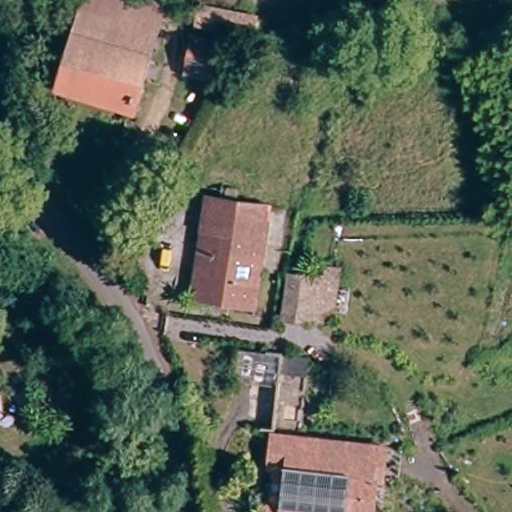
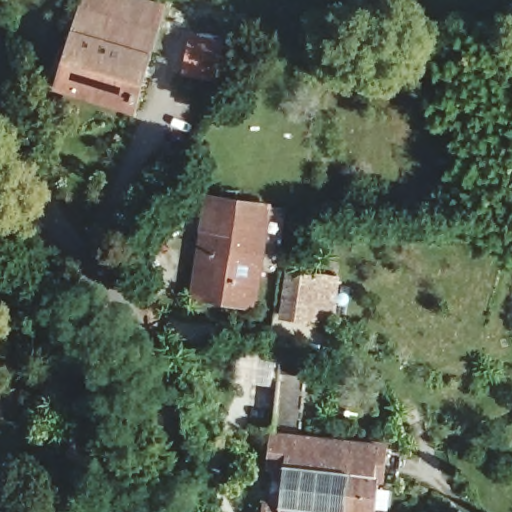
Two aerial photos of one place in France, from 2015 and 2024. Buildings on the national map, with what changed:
unchanged [(85,0),(135,0),(165,9),(138,107),(61,84),(82,9),(85,0)]
unchanged [(199,3),(263,15),(254,48),(227,43),(219,84),(184,77),(199,3)]
unchanged [(271,204),(262,305),(203,298),(207,196),(271,204)]
unchanged [(282,319),(288,273),(313,276),(331,278),(330,325),(282,319)]
unchanged [(211,333),(243,336),(242,352),(228,351),(210,350),(211,333)]
unchanged [(392,460),(385,512),(264,512),(275,431),(393,449),(392,460)]

